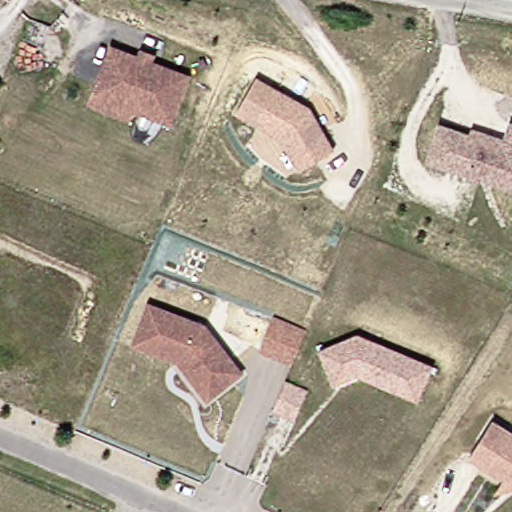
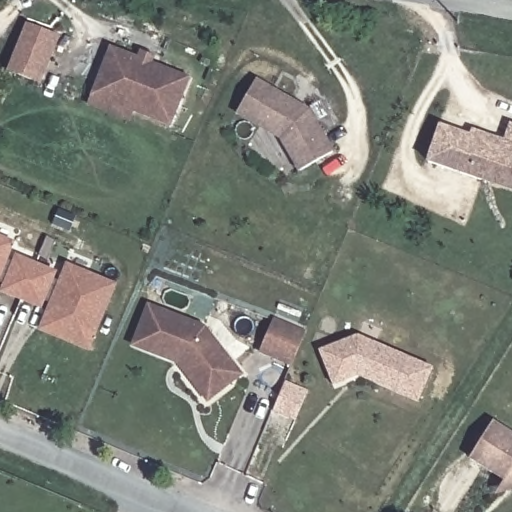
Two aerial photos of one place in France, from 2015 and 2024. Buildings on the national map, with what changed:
new [(27,24),(59,36),(51,58),(40,84),(8,70),(19,44),(27,24)]
unchanged [(83,104),(91,83),(105,45),(133,55),(147,61),(185,74),(167,124),(129,109),(126,119),(83,104)]
unchanged [(309,108),(335,152),(296,173),(277,140),(235,116),(256,80),(309,108)]
unchanged [(477,177),(426,159),(437,123),(480,138),(481,131),(502,139),(508,121),(512,123),(512,179),(477,177)]
unchanged [(511,188),(512,185),(512,188),(511,188)]
new [(43,299),(41,304),(3,289),(6,283),(0,279),(0,236),(12,241),(6,257),(15,260),(17,256),(54,272),(52,278),(61,281),(68,265),(114,284),(88,347),(64,337),(42,328),(45,320),(53,303),(43,299)]
unchanged [(174,359),(130,340),(146,300),(201,324),(237,372),(221,384),(204,398),(195,386),(174,359)]
unchanged [(290,364),(257,349),(270,317),(303,331),(290,364)]
unchanged [(344,374),(330,379),(324,363),(316,344),(354,329),(429,363),(414,398),(371,378),(354,370),(344,374)]
unchanged [(282,382),(305,391),(294,419),(271,409),(282,382)]
unchanged [(470,457),(491,421),(512,433),(512,482),(470,457)]

